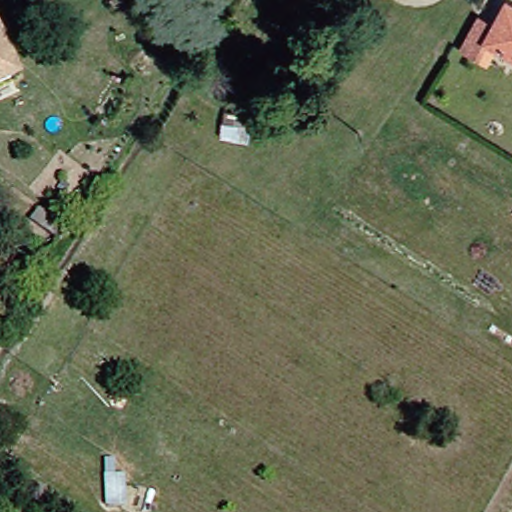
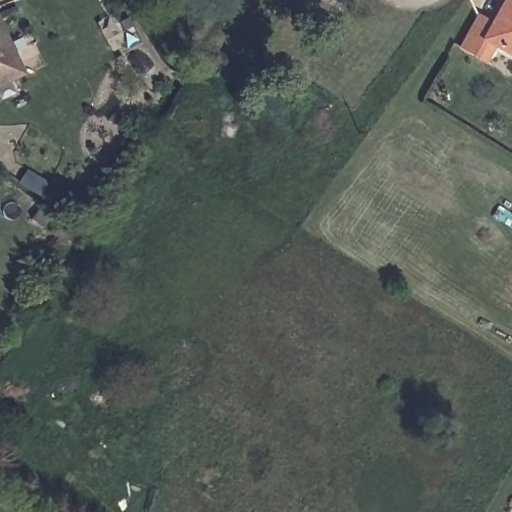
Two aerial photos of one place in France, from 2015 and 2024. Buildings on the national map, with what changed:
unchanged [(512,6),(512,59),(473,37),(465,52),(450,44),(467,12),(482,20),(493,0),(501,0),(512,6)]
unchanged [(0,78),(0,56),(9,74),(0,78)]
unchanged [(232,124),(221,122),(222,112),(233,114),(232,124)]
unchanged [(69,230),(61,241),(31,220),(39,209),(69,230)]

